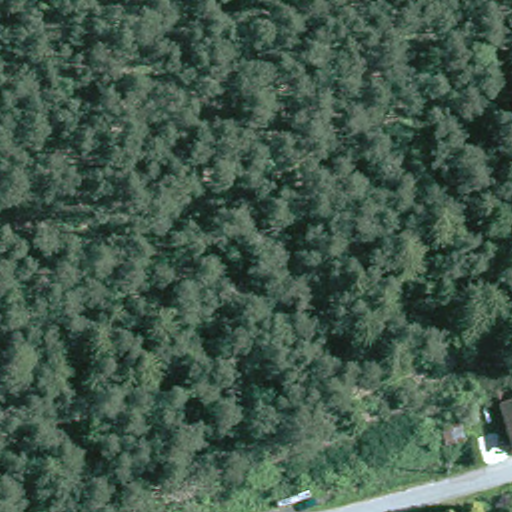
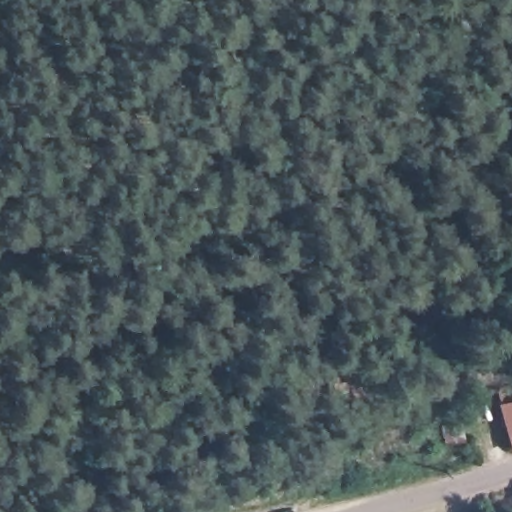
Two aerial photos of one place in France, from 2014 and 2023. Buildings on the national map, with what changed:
unchanged [(507,446),(497,398),(497,396),(496,392),(512,388),(512,445),(507,446)]

